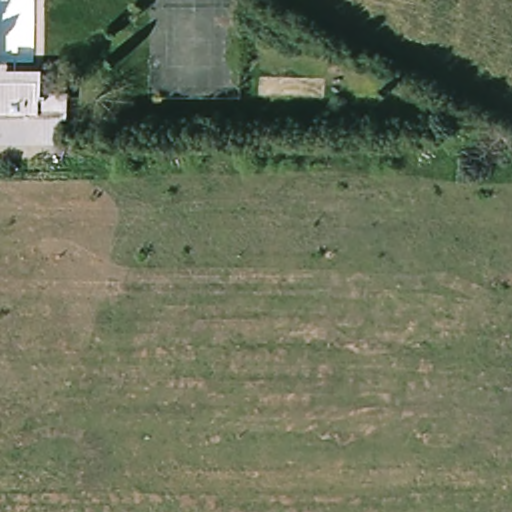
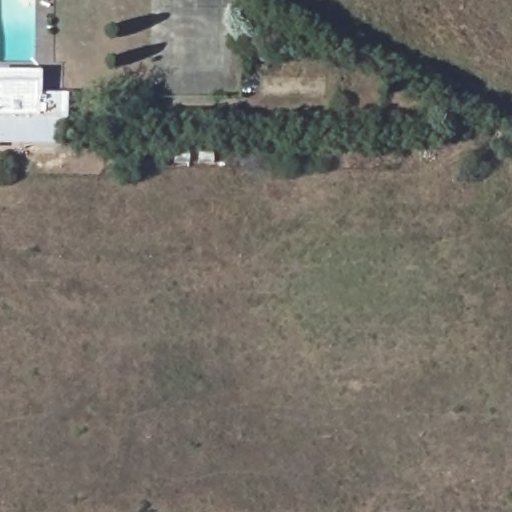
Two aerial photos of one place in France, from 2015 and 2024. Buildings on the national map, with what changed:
unchanged [(56,109),(51,109),(51,133),(0,134),(0,84),(26,84),(26,97),(56,96),(56,109)]

